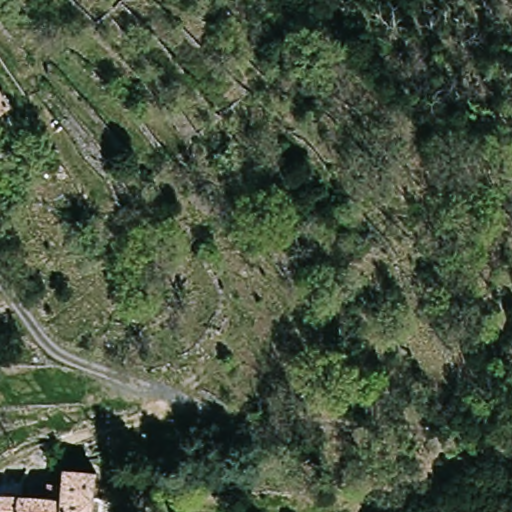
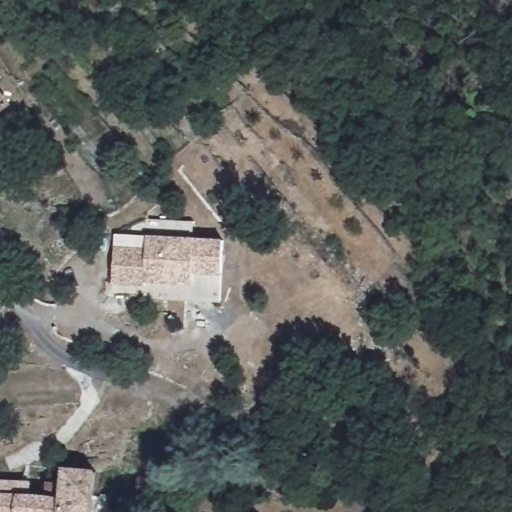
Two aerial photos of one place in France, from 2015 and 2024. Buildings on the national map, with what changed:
unchanged [(2,98),(15,117),(0,127),(0,96),(2,98)]
new [(147,250),(147,237),(148,221),(186,222),(185,239),(224,241),(223,274),(194,272),(193,283),(147,282),(146,286),(113,285),(115,249),(147,250)]
new [(146,286),(147,282),(193,283),(194,272),(223,274),(221,302),(146,298),(146,286)]
unchanged [(47,496),(49,482),(62,484),(63,470),(93,473),(90,497),(98,498),(108,500),(106,512),(58,512),(60,497),(47,496)]
unchanged [(58,512),(0,512),(0,476),(19,478),(18,492),(47,496),(60,497),(58,512)]

